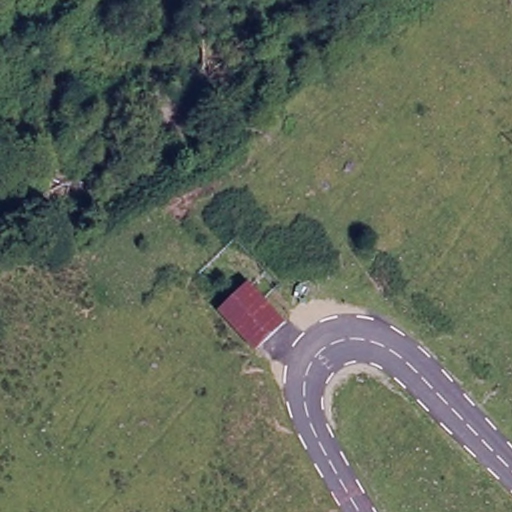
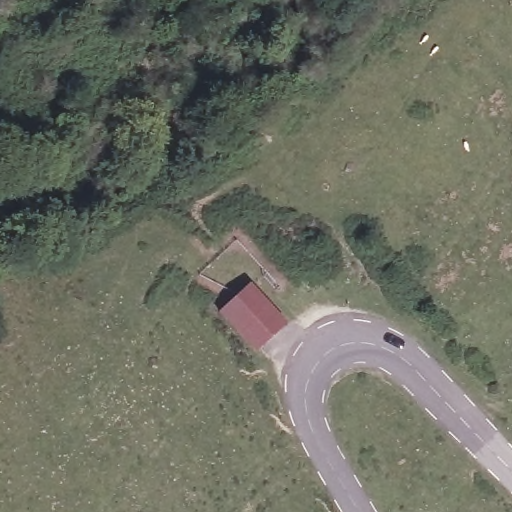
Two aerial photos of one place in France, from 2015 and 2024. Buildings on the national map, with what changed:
unchanged [(251,357),(213,314),(249,281),(286,326),(251,357)]

